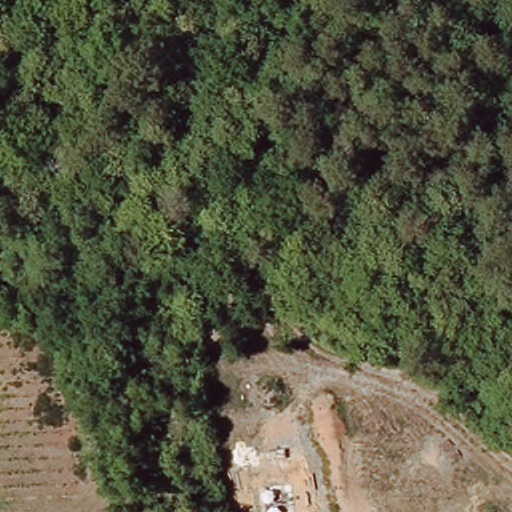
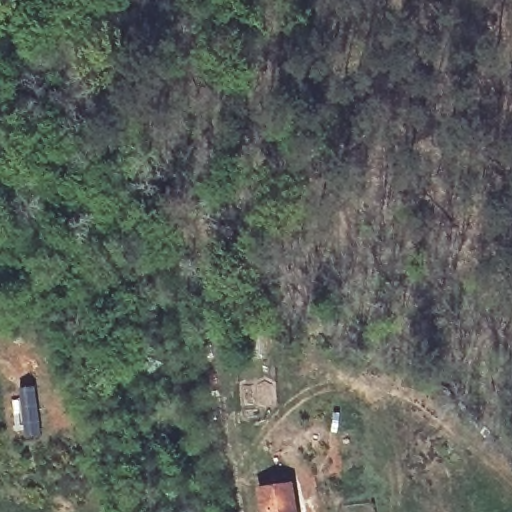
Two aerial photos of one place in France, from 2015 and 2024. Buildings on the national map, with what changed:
new [(298,512),(259,512),(256,490),(293,484),(298,512)]

